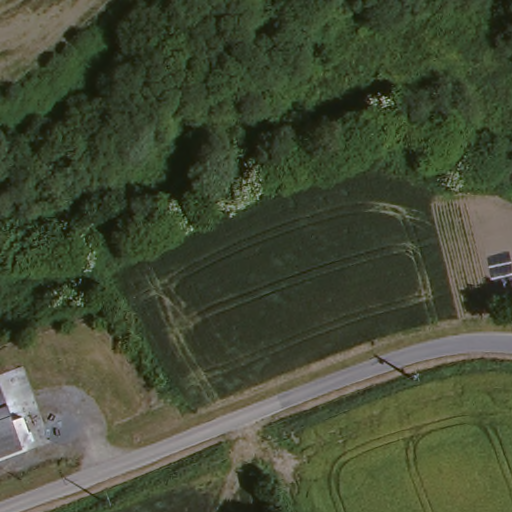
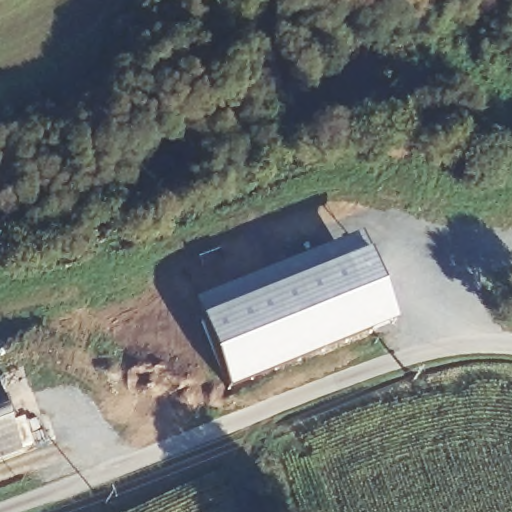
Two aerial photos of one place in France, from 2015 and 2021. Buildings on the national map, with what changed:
new [(369,248),(396,318),(376,326),(356,277),(212,332),(204,312),(369,248)]
new [(356,277),(376,326),(231,381),(212,332),(356,277)]
unchanged [(25,458),(0,467),(0,389),(25,458)]

